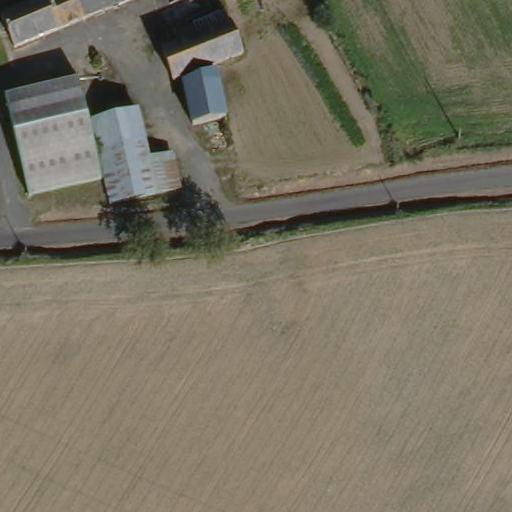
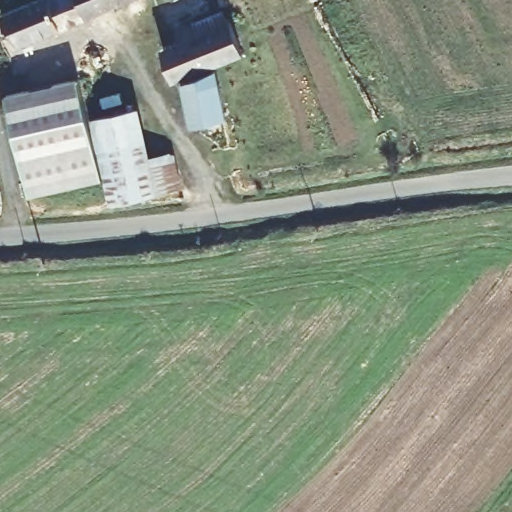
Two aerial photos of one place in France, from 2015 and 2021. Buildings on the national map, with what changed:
unchanged [(0,20),(50,0),(134,0),(10,50),(0,24),(0,20)]
unchanged [(232,29),(242,55),(239,56),(176,81),(165,53),(196,40),(192,30),(220,18),(224,28),(231,26),(232,29)]
unchanged [(224,123),(192,131),(182,89),(213,73),(224,123)]
unchanged [(99,177),(27,197),(4,98),(74,81),(99,177)]
unchanged [(182,187),(158,194),(112,206),(91,122),(137,111),(149,161),(174,154),(182,187)]

